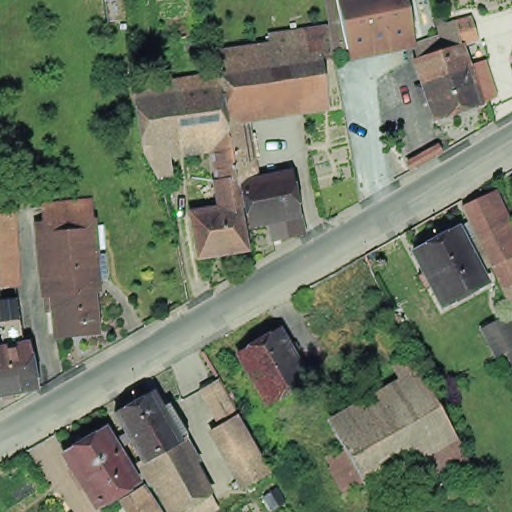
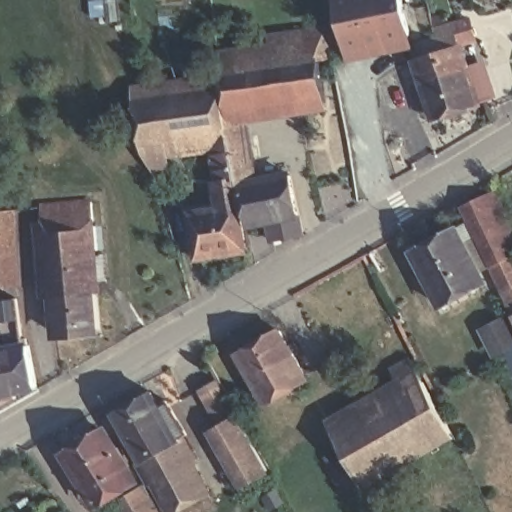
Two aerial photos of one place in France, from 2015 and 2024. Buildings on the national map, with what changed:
unchanged [(412,0),(420,40),(357,53),(344,56),(342,51),(335,3),(347,1),(351,0),(412,0)]
unchanged [(330,32),(337,64),(324,66),(330,105),(257,115),(257,117),(234,120),(222,47),(330,32)]
unchanged [(440,60),(435,45),(466,36),(470,51),(489,109),(442,123),(424,65),(440,60)]
unchanged [(164,181),(160,182),(147,155),(139,99),(162,95),(225,86),(235,141),(223,143),(172,151),(176,178),(164,181)]
unchanged [(257,117),(265,159),(258,160),(262,184),(247,190),(245,190),(245,188),(239,141),(234,120),(257,117)]
unchanged [(247,209),(243,210),(228,213),(223,185),(230,184),(223,143),(235,141),(239,141),(245,188),(245,190),(247,209)]
unchanged [(295,177),(309,238),(277,244),(273,227),(255,230),(247,190),(262,184),(295,177)]
unchanged [(512,254),(512,316),(510,312),(462,204),(484,194),(512,254)]
unchanged [(228,213),(243,210),(250,252),(202,261),(197,218),(228,213)]
unchanged [(55,341),(53,318),(45,318),(44,304),(52,304),(45,215),(92,211),(97,264),(90,264),(92,301),(95,339),(55,341)]
unchanged [(15,285),(0,287),(0,213),(11,213),(15,285)]
unchanged [(488,284),(448,306),(417,248),(460,225),(488,284)]
unchanged [(2,333),(0,333),(0,298),(0,303),(17,302),(25,343),(30,343),(30,349),(40,391),(0,398),(0,353),(5,352),(2,333)]
unchanged [(510,312),(512,316),(512,347),(492,358),(479,330),(510,312)]
unchanged [(308,378),(265,402),(237,353),(280,329),(308,378)]
unchanged [(332,460),(347,452),(338,437),(410,396),(398,373),(415,364),(428,386),(455,437),(417,458),(365,487),(365,486),(350,493),(332,460)]
unchanged [(214,435),(221,431),(200,392),(205,390),(218,384),(238,422),(240,421),(270,475),(257,481),(244,489),(214,435)]
unchanged [(183,512),(171,512),(143,465),(132,445),(123,450),(117,441),(126,436),(115,418),(150,397),(160,413),(167,409),(185,440),(177,444),(207,496),(183,512)]
unchanged [(97,511),(65,456),(102,434),(135,488),(97,511)]
unchanged [(417,458),(455,437),(475,471),(435,492),(417,458)]
unchanged [(160,512),(142,512),(132,494),(145,487),(160,512)]

